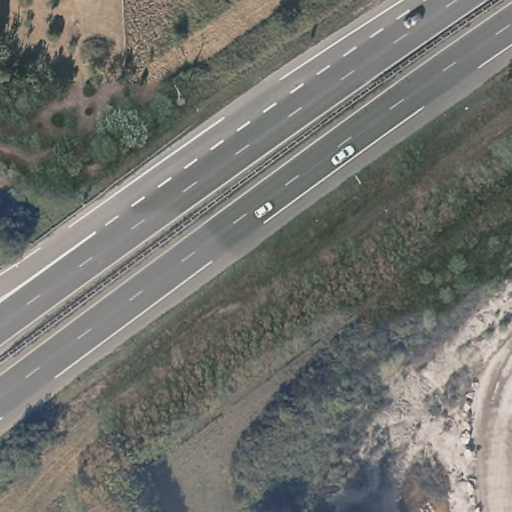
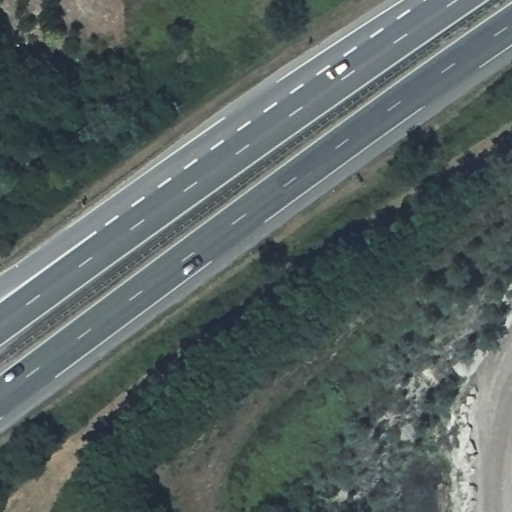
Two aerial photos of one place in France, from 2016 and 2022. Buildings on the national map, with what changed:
[]

